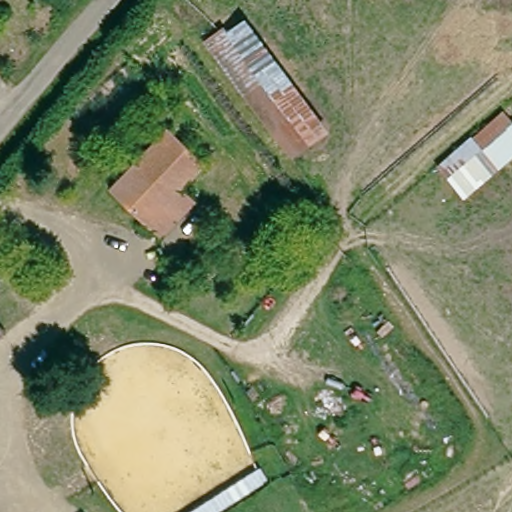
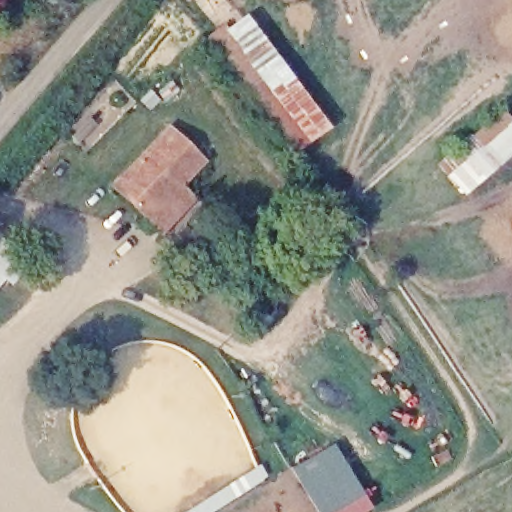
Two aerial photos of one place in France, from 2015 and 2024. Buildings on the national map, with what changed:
unchanged [(290,158),(204,39),(222,24),(227,30),(244,17),(328,131),(290,158)]
unchanged [(461,198),(435,164),(502,109),(510,122),(512,121),(512,155),(461,198)]
unchanged [(176,124),(214,161),(188,189),(182,183),(153,215),(119,183),(176,124)]
unchanged [(206,205),(175,235),(153,215),(182,183),(188,189),(206,205)]
new [(10,288),(0,279),(0,242),(29,264),(10,288)]
new [(372,509),(368,512),(314,512),(288,469),(332,443),(372,509)]
unchanged [(267,481),(216,512),(182,512),(259,466),(267,481)]

